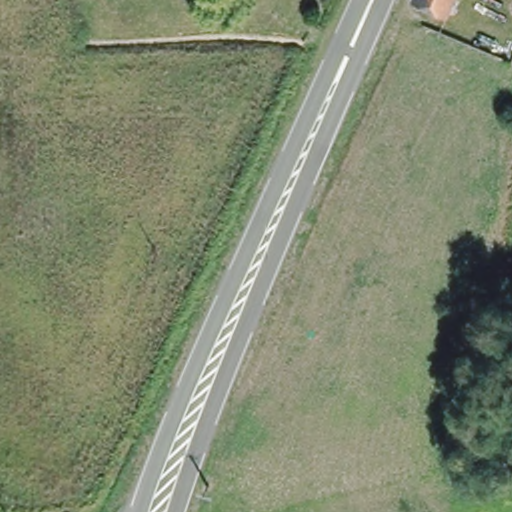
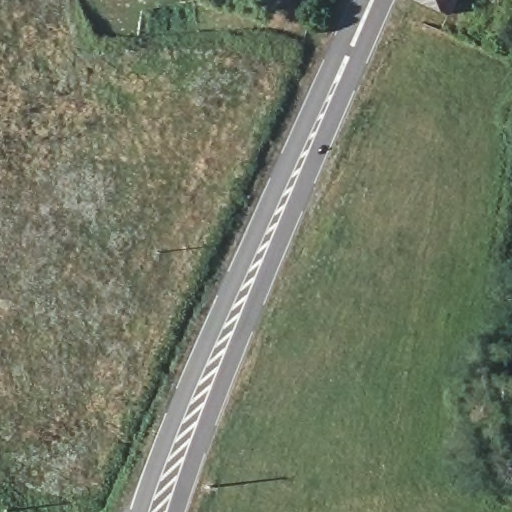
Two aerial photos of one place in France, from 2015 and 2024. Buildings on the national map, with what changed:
unchanged [(447,10),(428,0),(451,0),(447,10)]

